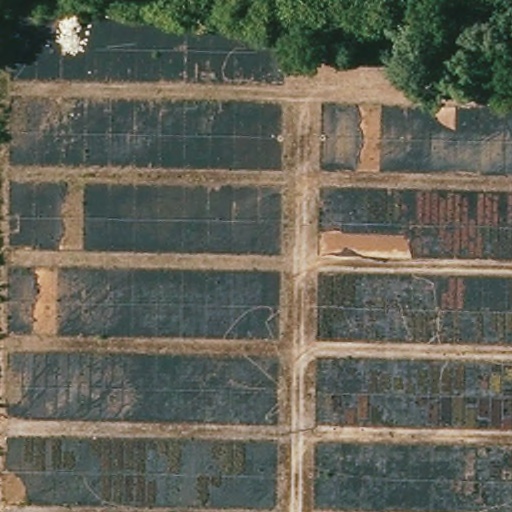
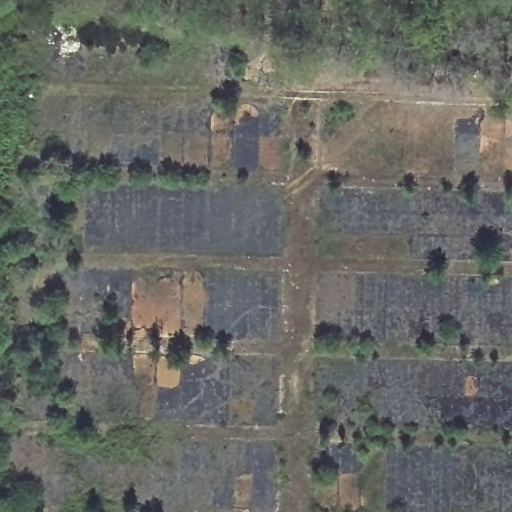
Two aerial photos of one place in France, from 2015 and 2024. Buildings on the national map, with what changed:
[]

